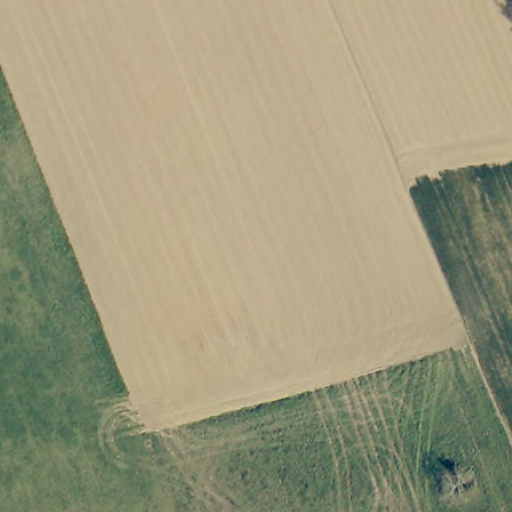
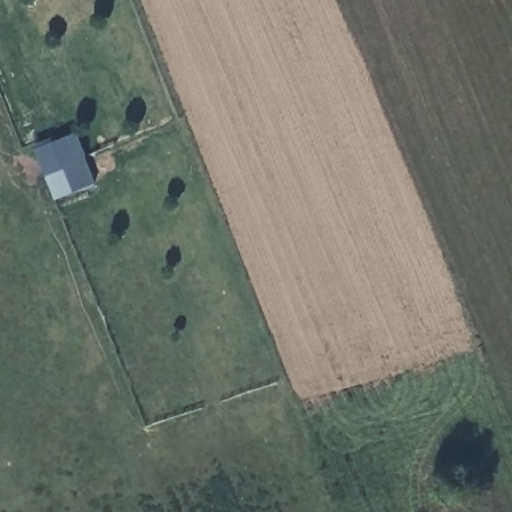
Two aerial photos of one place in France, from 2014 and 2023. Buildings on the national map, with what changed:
new [(54,200),(33,148),(75,132),(95,184),(54,200)]

